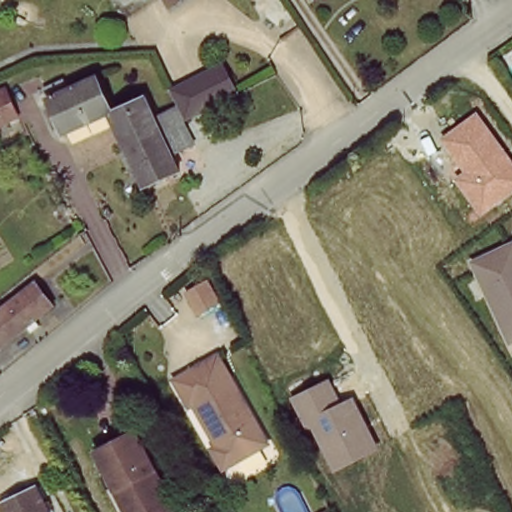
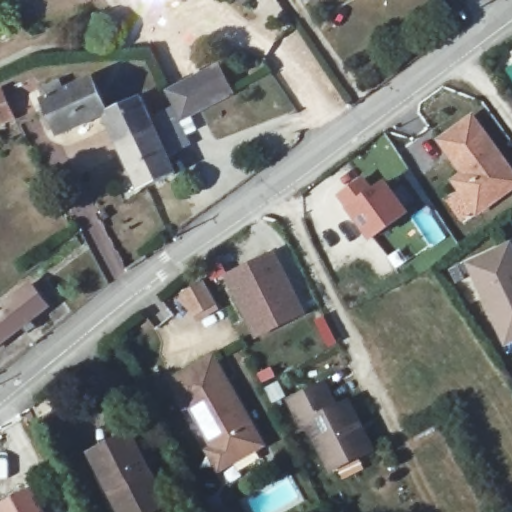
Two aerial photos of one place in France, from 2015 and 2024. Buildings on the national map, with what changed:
unchanged [(167,0),(172,0),(168,2),(167,0)]
unchanged [(60,130),(50,101),(43,86),(60,79),(63,77),(64,79),(68,87),(93,75),(95,75),(109,108),(60,130)]
unchanged [(172,100),(225,76),(238,104),(184,130),(175,106),(172,100)]
unchanged [(3,90),(15,116),(0,122),(0,91),(3,90)]
unchanged [(109,108),(142,95),(147,91),(157,112),(175,106),(184,130),(188,139),(177,144),(169,147),(166,139),(164,132),(145,140),(141,141),(127,147),(109,108)]
unchanged [(512,191),(477,217),(451,180),(459,172),(437,140),(474,115),(512,166),(512,191)]
unchanged [(178,171),(143,185),(139,177),(127,147),(141,141),(145,140),(164,132),(166,139),(169,147),(178,171)]
new [(363,176),(373,188),(386,179),(411,212),(371,240),(347,209),(337,195),(363,176)]
unchanged [(512,241),(512,343),(504,347),(467,261),(511,240),(512,241)]
new [(276,250),(306,312),(256,339),(225,275),(276,250)]
unchanged [(35,283),(50,306),(32,318),(39,327),(28,335),(22,325),(0,341),(0,308),(35,283)]
unchanged [(194,315),(183,295),(203,285),(213,306),(194,315)]
unchanged [(228,466),(196,408),(189,406),(177,385),(221,360),(260,430),(257,432),(267,450),(235,468),(228,466)]
unchanged [(375,451),(330,473),(307,429),(302,432),(287,400),(326,381),(338,405),(350,399),(375,451)]
unchanged [(113,487),(96,450),(134,432),(171,509),(165,512),(126,512),(113,487)]
unchanged [(0,502),(35,483),(49,512),(5,512),(0,502)]

